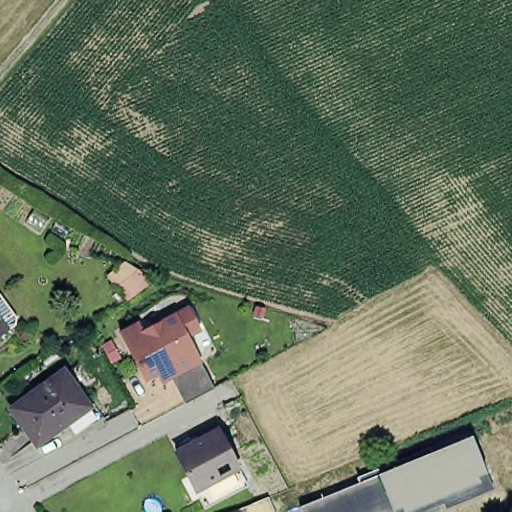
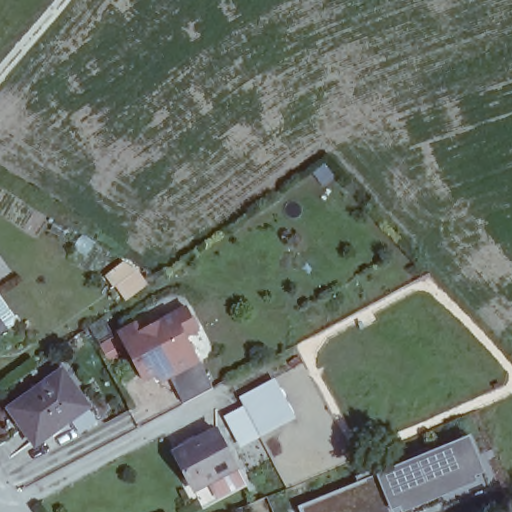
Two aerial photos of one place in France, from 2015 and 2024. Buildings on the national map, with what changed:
unchanged [(122,261),(138,270),(147,285),(121,303),(105,278),(122,261)]
unchanged [(136,324),(140,331),(174,311),(176,314),(186,304),(201,331),(190,342),(213,390),(186,405),(172,380),(161,386),(156,375),(144,383),(119,334),(136,324)]
unchanged [(1,335),(0,336),(0,335),(1,335)]
unchanged [(11,409),(63,371),(84,401),(88,407),(74,417),(36,445),(11,409)]
new [(296,421),(241,448),(224,419),(244,408),(240,400),(276,380),(296,421)]
unchanged [(217,427),(246,482),(205,504),(200,491),(195,495),(173,452),(217,427)]
unchanged [(359,482),(357,476),(380,467),(382,472),(472,436),(487,474),(493,490),(438,512),(303,512),(301,507),(359,482)]

